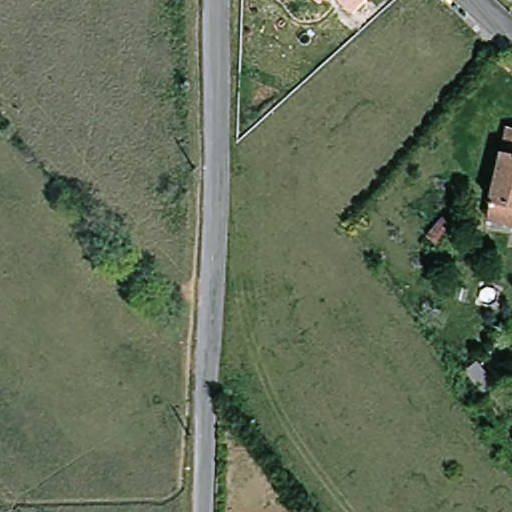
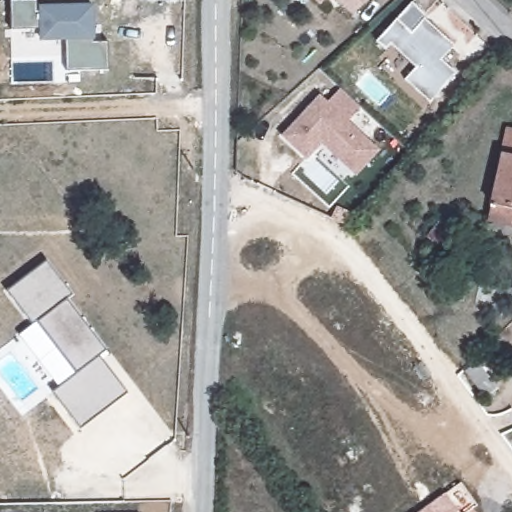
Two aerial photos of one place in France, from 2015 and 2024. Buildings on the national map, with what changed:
unchanged [(323,0),(320,3),(317,0),(323,0)]
unchanged [(340,0),(367,0),(354,14),(340,0)]
new [(67,40),(39,40),(40,30),(12,30),(12,1),(38,1),(38,6),(95,5),(95,42),(110,43),(110,71),(66,71),(67,40)]
new [(406,80),(417,68),(391,45),(387,50),(377,40),(415,2),(428,16),(425,20),(455,47),(442,60),(457,74),(430,103),(406,80)]
new [(322,145),(306,161),(280,135),(320,95),(329,103),(342,90),(362,109),(349,122),(378,151),(357,175),(322,145)]
unchanged [(491,225),(512,131),(512,132),(512,229),(491,225)]
new [(337,206),(355,214),(347,224),(333,217),(337,206)]
new [(72,295),(67,300),(107,351),(100,357),(129,394),(81,430),(52,393),(77,373),(37,322),(33,325),(7,291),(47,261),(72,295)]
unchanged [(502,391),(492,400),(472,374),(482,366),(502,391)]
new [(445,493),(461,482),(477,505),(467,512),(419,512),(445,493)]

